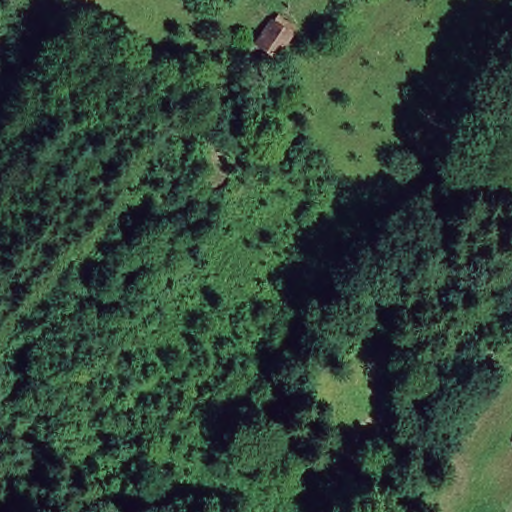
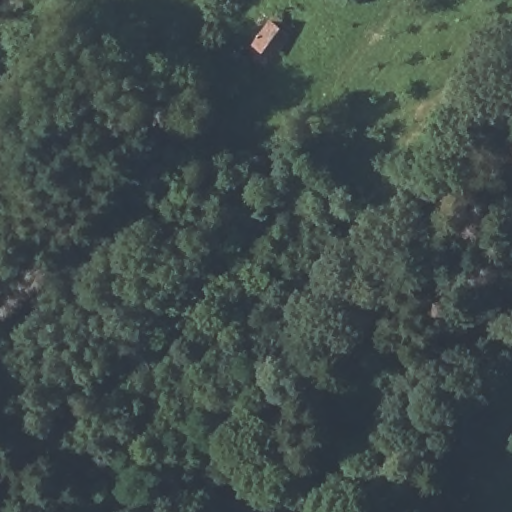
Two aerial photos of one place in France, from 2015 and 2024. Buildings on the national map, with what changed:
unchanged [(269,17),(291,34),(272,63),(249,46),(269,17)]

